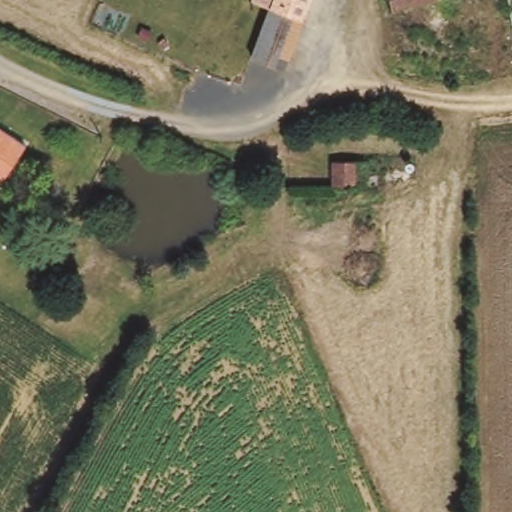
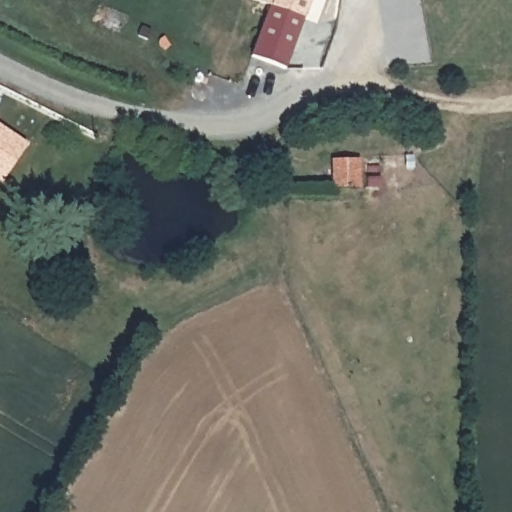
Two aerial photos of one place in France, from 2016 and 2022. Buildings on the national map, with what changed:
unchanged [(312,0),(305,19),(272,6),(254,0),(312,0)]
unchanged [(397,14),(394,0),(445,0),(445,1),(397,14)]
unchanged [(254,56),(272,6),(305,19),(287,68),(287,69),(254,56)]
unchanged [(4,180),(0,178),(0,127),(28,145),(4,180)]
unchanged [(358,160),(358,190),(331,189),(331,160),(358,160)]

